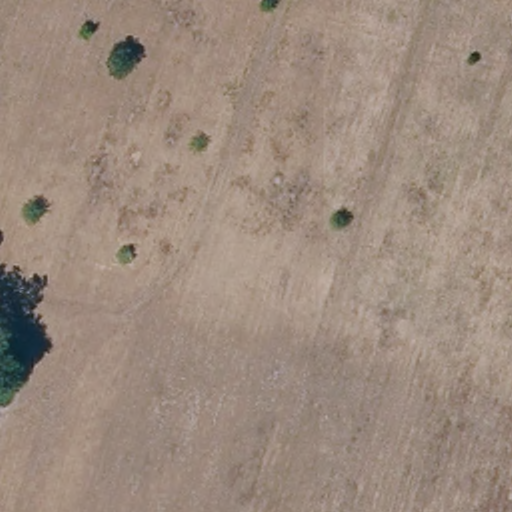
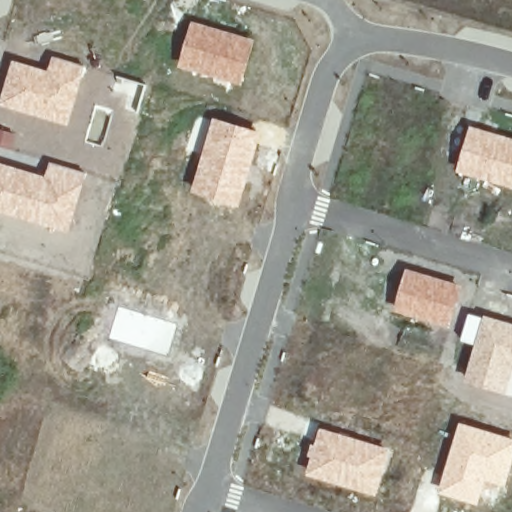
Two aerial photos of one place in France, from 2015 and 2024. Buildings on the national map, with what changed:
new [(243,85),(179,66),(193,20),(256,39),(243,85)]
new [(69,124),(0,104),(14,60),(49,69),(53,56),(86,66),(69,124)]
new [(240,207),(192,192),(215,118),(263,132),(240,207)]
new [(458,172),(471,126),(512,137),(512,187),(458,172)]
new [(0,211),(0,163),(46,175),(51,162),(88,173),(71,232),(0,211)]
new [(452,328),(395,310),(408,269),(465,285),(452,328)]
new [(508,392),(467,381),(485,315),(512,323),(512,377),(508,392)]
new [(507,486),(487,481),(480,504),(441,493),(461,422),(512,437),(512,469),(507,486)]
new [(378,496),(308,474),(322,428),(392,449),(378,496)]

